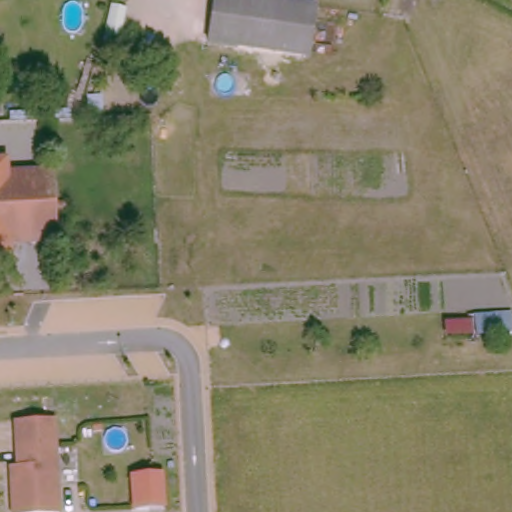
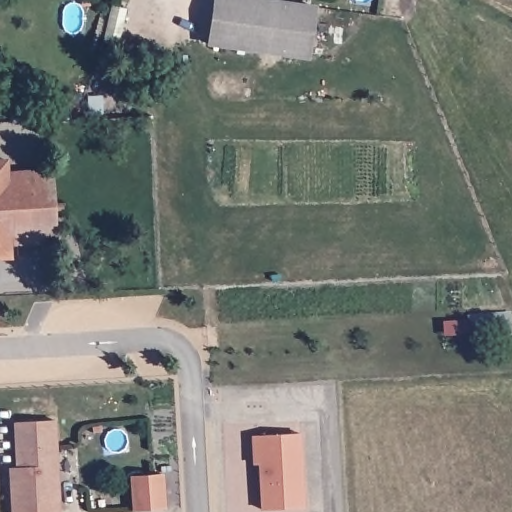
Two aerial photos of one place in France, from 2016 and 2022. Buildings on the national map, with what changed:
unchanged [(315,6),(308,57),(211,44),(217,0),(270,0),(315,6)]
unchanged [(120,47),(106,43),(112,21),(126,25),(120,47)]
unchanged [(8,169),(54,167),(55,241),(12,242),(12,257),(0,257),(0,156),(7,156),(8,169)]
unchanged [(477,320),(477,312),(512,311),(512,339),(447,341),(447,320),(477,320)]
unchanged [(15,421),(55,420),(59,512),(13,512),(12,475),(11,465),(17,465),(15,421)]
new [(254,462),(252,437),(302,431),(305,507),(264,512),(260,462),(254,462)]
new [(130,474),(164,473),(167,509),(132,509),(130,474)]

